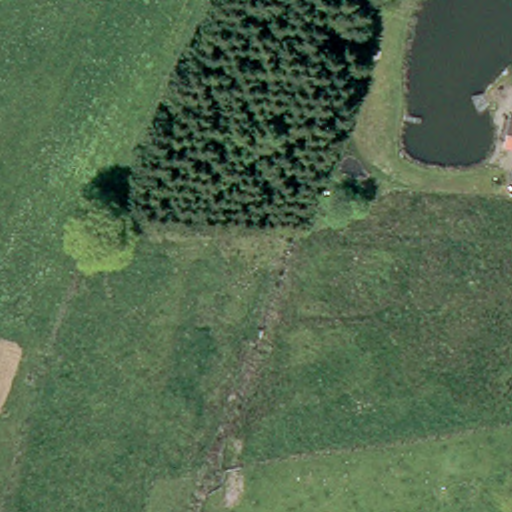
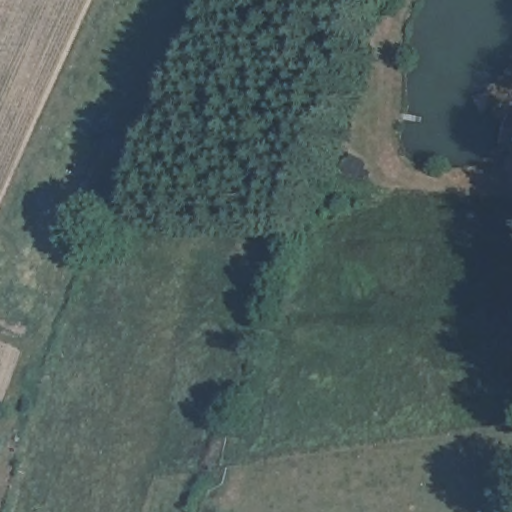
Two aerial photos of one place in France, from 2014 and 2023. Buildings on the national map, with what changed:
unchanged [(512,120),(512,135),(509,134),(512,120)]

